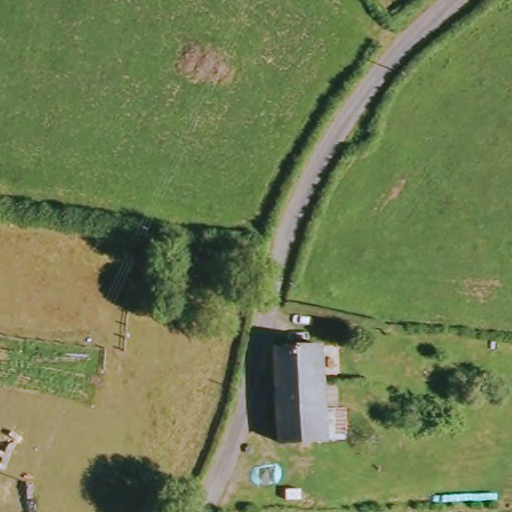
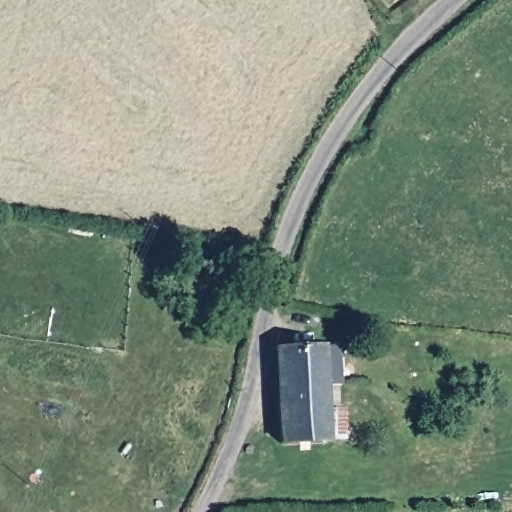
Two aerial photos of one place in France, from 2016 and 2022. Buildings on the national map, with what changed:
unchanged [(346,439),(326,440),(276,443),(273,354),(274,345),(320,342),(325,407),(344,407),(346,439)]

